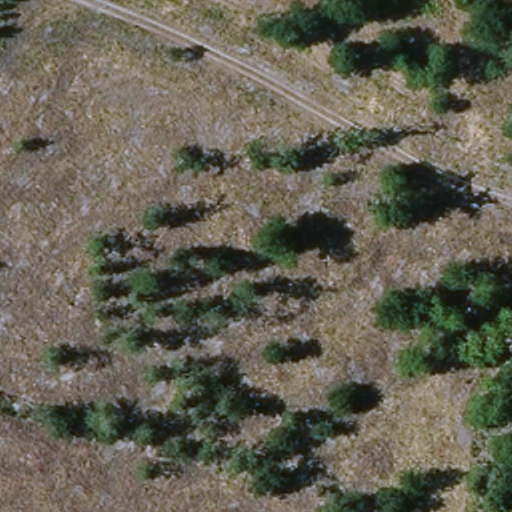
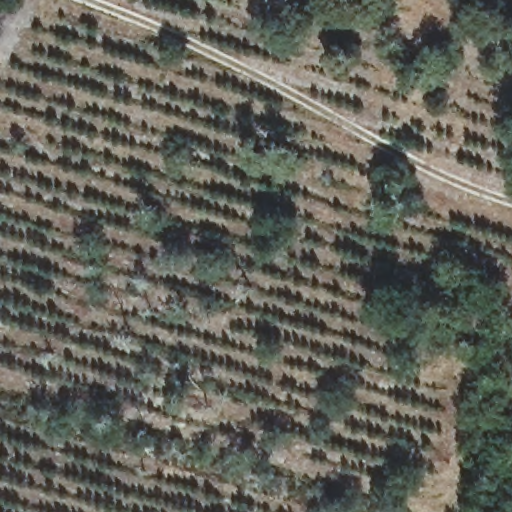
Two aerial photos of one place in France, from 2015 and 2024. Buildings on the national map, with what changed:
[]

